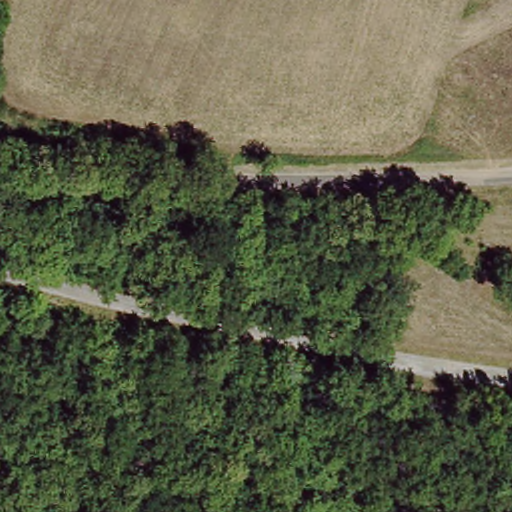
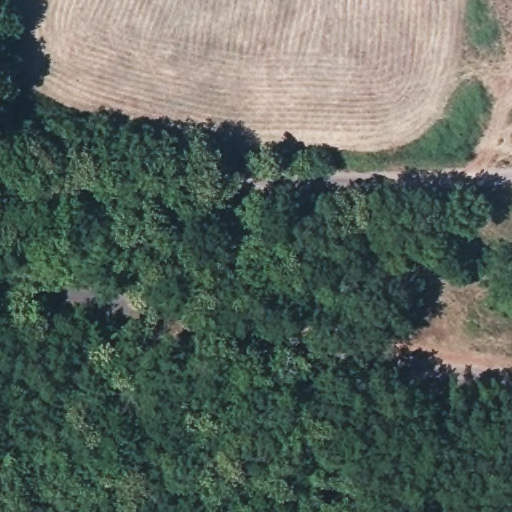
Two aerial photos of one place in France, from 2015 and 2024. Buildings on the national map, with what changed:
[]

